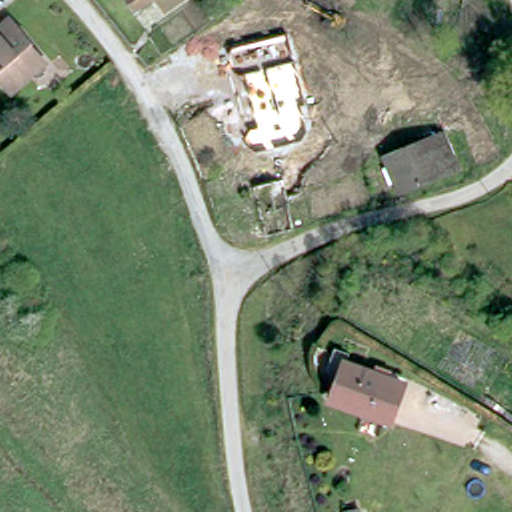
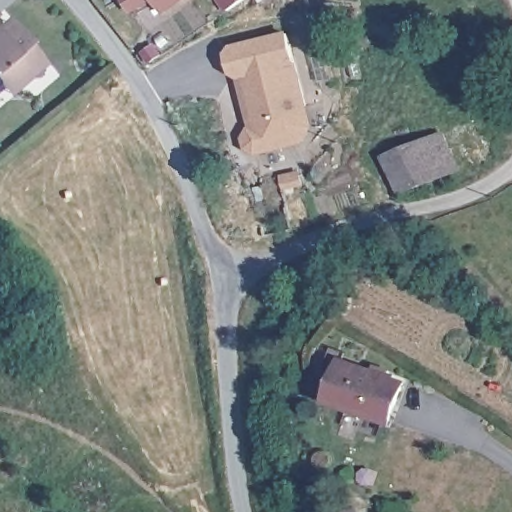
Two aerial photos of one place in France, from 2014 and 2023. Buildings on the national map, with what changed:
unchanged [(131,11),(122,0),(146,0),(131,11)]
unchanged [(147,0),(174,0),(157,12),(147,0)]
new [(226,11),(218,0),(243,0),(226,11)]
unchanged [(32,47),(30,49),(42,64),(24,77),(28,82),(8,98),(0,87),(0,43),(18,30),(32,47)]
new [(312,127),(301,144),(255,155),(244,149),(242,137),(248,127),(238,80),(231,74),(226,52),(233,44),(288,31),(296,64),(312,127)]
unchanged [(447,135),(462,172),(401,196),(387,157),(447,135)]
demolished [(274,179),(288,229),(261,237),(246,187),(274,179)]
unchanged [(336,408),(338,402),(349,368),(405,387),(393,426),(336,408)]

